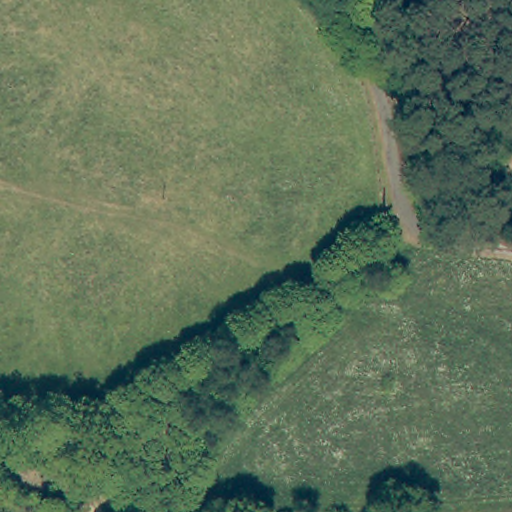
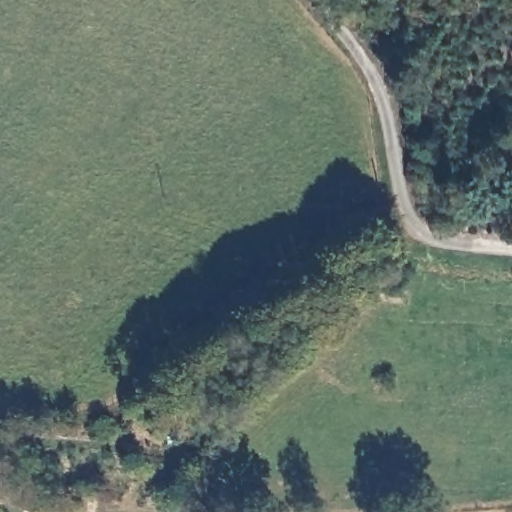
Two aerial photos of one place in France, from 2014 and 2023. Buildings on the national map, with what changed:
[]

